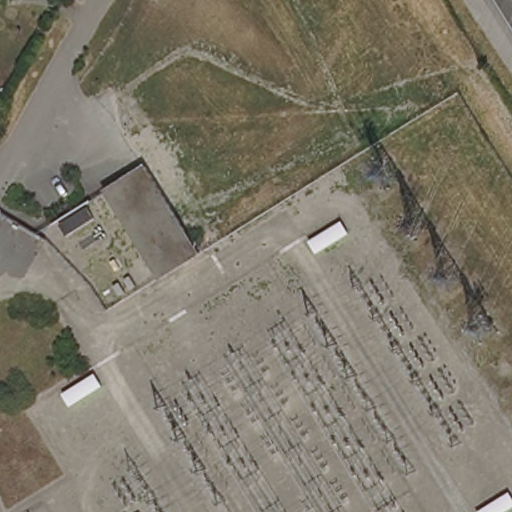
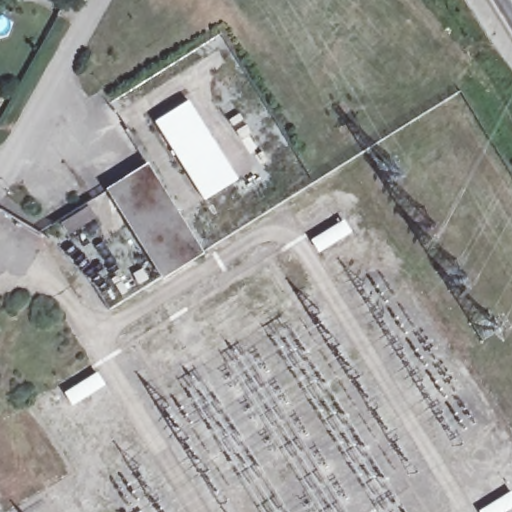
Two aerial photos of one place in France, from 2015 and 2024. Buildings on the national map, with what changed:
new [(187,100),(237,179),(202,200),(154,122),(187,100)]
unchanged [(197,249),(155,275),(106,193),(147,167),(197,249)]

